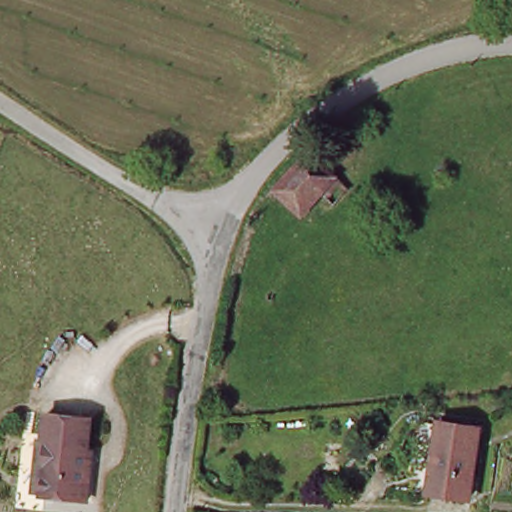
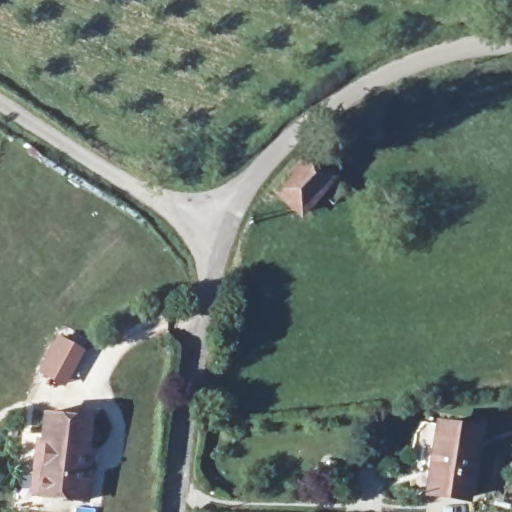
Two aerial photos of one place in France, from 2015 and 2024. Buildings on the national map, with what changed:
unchanged [(347,184),(330,201),(320,192),(303,212),(277,193),(309,152),(347,184)]
new [(64,388),(36,373),(57,336),(84,350),(64,388)]
unchanged [(88,467),(80,502),(34,496),(45,450),(37,448),(45,418),(91,427),(82,467),(88,467)]
unchanged [(425,490),(435,432),(477,437),(467,495),(425,490)]

